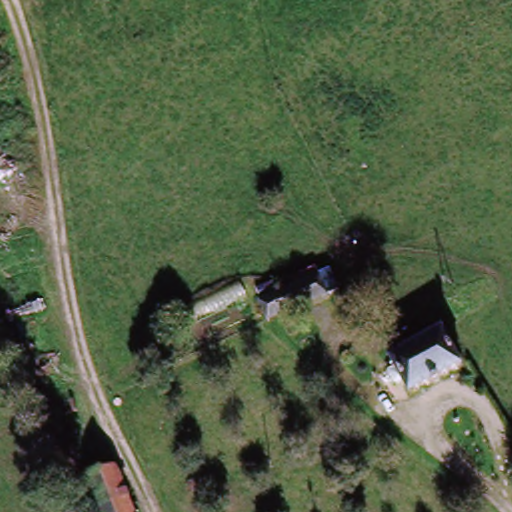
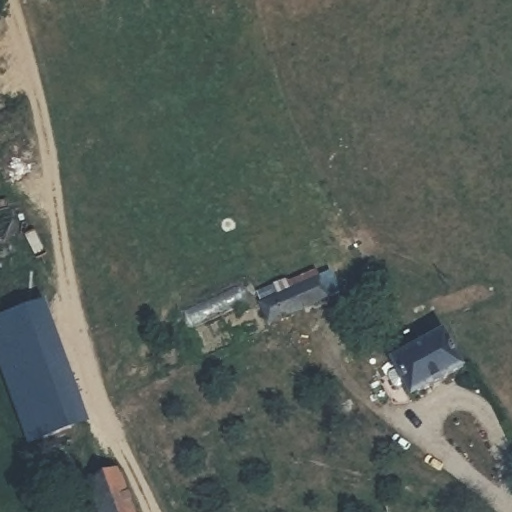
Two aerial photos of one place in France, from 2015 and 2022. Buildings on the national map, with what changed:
unchanged [(257,300),(271,295),(315,274),(330,303),(311,312),(282,324),(270,329),(257,300)]
new [(90,423),(31,445),(0,364),(0,320),(45,301),(90,423)]
unchanged [(387,367),(400,360),(390,344),(413,331),(422,347),(438,338),(460,378),(411,404),(395,374),(387,367)]
unchanged [(120,472),(135,512),(101,512),(90,484),(120,472)]

